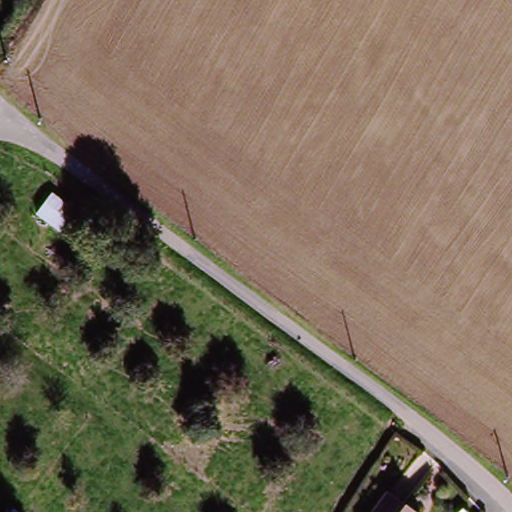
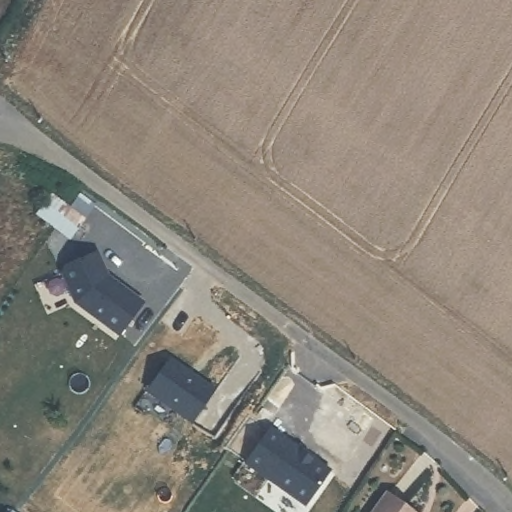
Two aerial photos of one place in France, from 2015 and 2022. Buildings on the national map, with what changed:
unchanged [(86,217),(72,237),(37,214),(52,193),(63,201),(86,217)]
new [(110,276),(146,302),(120,338),(75,304),(61,274),(64,265),(99,250),(110,276)]
new [(220,391),(197,426),(147,391),(170,357),(220,391)]
new [(333,470),(307,507),(245,464),(270,426),(333,470)]
unchanged [(408,512),(375,512),(387,496),(408,512)]

